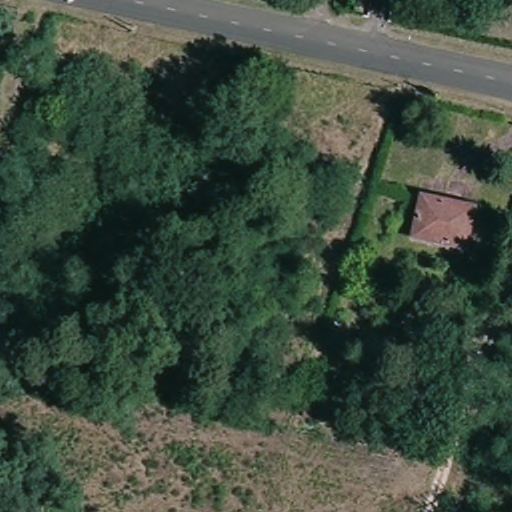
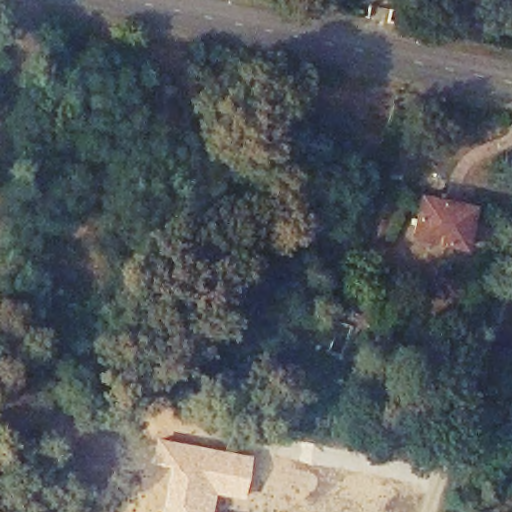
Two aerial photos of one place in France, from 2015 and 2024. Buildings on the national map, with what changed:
unchanged [(473,209),(465,250),(411,239),(420,197),(473,209)]
new [(251,455),(242,497),(214,493),(209,512),(182,512),(177,504),(180,476),(172,467),(169,466),(152,463),(157,437),(251,455)]

